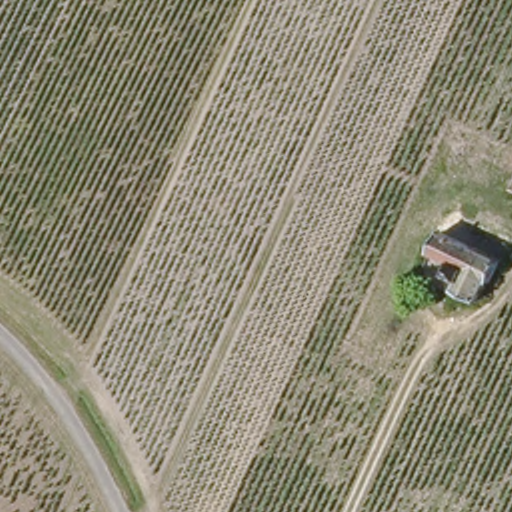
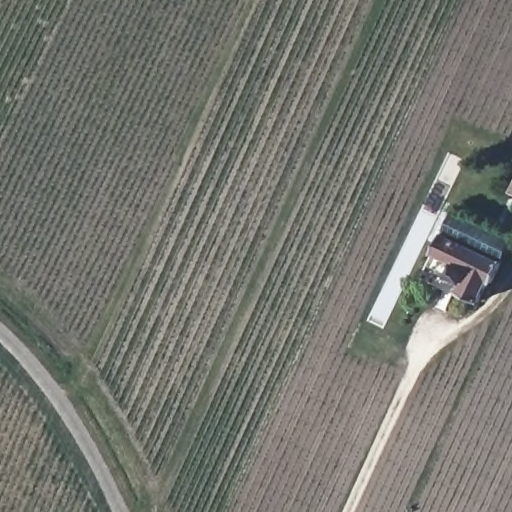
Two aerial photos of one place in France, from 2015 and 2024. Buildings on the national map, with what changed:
unchanged [(512,194),(507,191),(512,182),(512,194)]
unchanged [(508,258),(498,279),(494,277),(485,298),(464,288),(461,293),(424,275),(456,208),(512,235),(512,245),(506,257),(508,258)]

